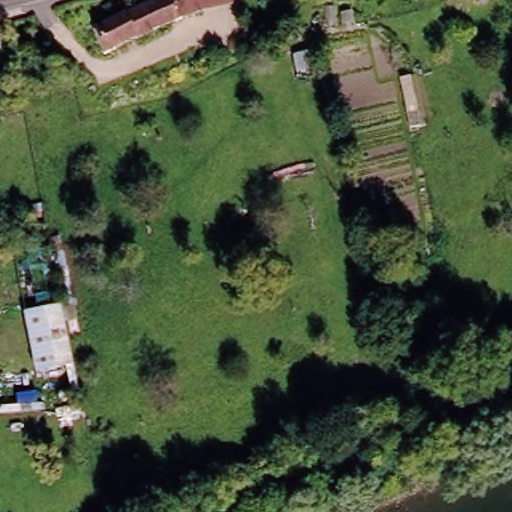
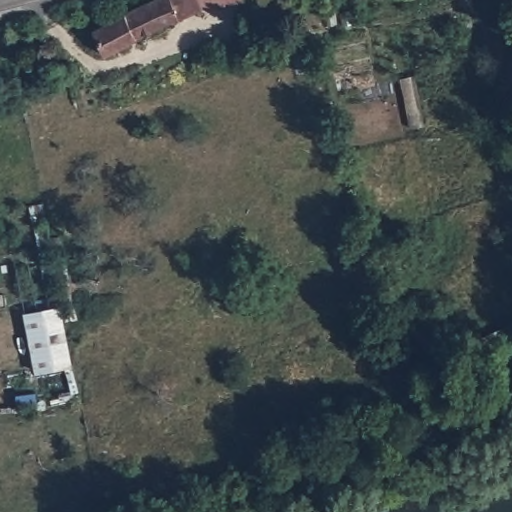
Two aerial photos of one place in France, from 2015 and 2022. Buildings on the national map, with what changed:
unchanged [(107,50),(96,26),(151,0),(174,0),(178,10),(181,16),(176,18),(147,31),(107,50)]
unchanged [(200,0),(241,0),(209,10),(200,0)]
unchanged [(59,243),(71,305),(62,306),(72,367),(29,374),(16,310),(27,307),(15,249),(59,243)]

